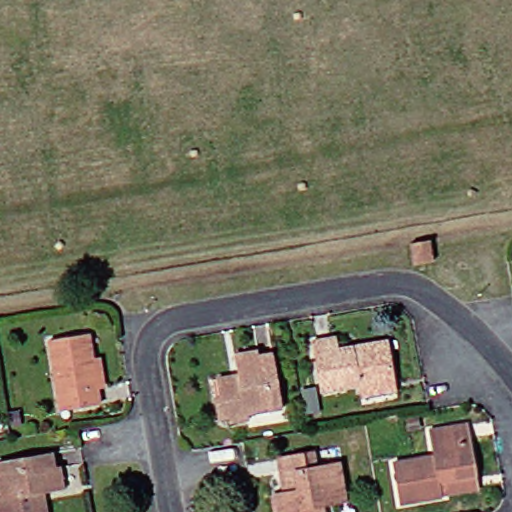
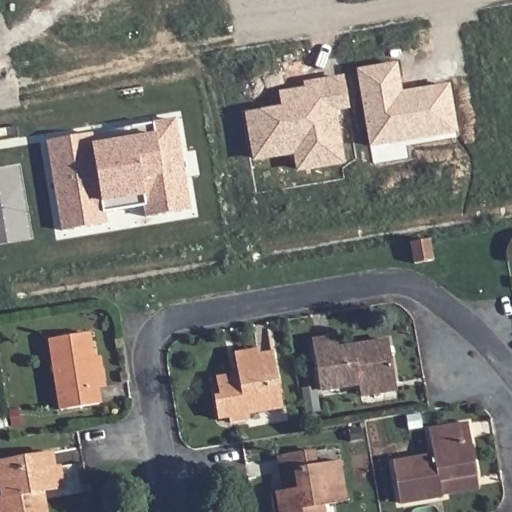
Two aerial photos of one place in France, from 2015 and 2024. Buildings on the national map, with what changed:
new [(401,92),(449,84),(458,133),(369,149),(356,70),(398,64),(401,92)]
new [(350,109),(336,112),(345,165),(296,172),(293,156),(253,163),(245,112),(281,107),(278,93),(304,89),(303,82),(344,76),(350,109)]
new [(193,210),(144,219),(143,207),(105,212),(108,223),(61,232),(46,141),(176,117),(193,210)]
unchanged [(433,260),(414,264),(411,243),(429,239),(433,260)]
unchanged [(103,385),(105,402),(66,409),(54,338),(94,332),(98,358),(103,357),(108,384),(103,385)]
unchanged [(370,389),(369,384),(331,390),(323,341),(346,337),(348,349),(398,340),(406,383),(407,390),(371,396),(370,389)]
unchanged [(216,403),(222,402),(219,387),(218,378),(239,374),(236,355),(258,351),(259,357),(273,355),(281,408),(248,414),(248,419),(231,422),(230,417),(219,419),(216,403)]
unchanged [(25,422),(17,423),(14,410),(23,408),(25,422)]
unchanged [(3,429),(0,429),(0,420),(1,420),(3,429)]
unchanged [(447,495),(447,497),(405,504),(398,464),(439,457),(434,431),(473,425),(482,475),(484,489),(447,495)]
unchanged [(298,491),(291,457),(322,451),(325,465),(348,461),(356,500),(334,504),(335,512),(290,512),(286,494),(298,491)]
unchanged [(13,491),(8,461),(61,452),(64,466),(69,466),(73,487),(53,490),(56,512),(11,512),(7,492),(13,491)]

